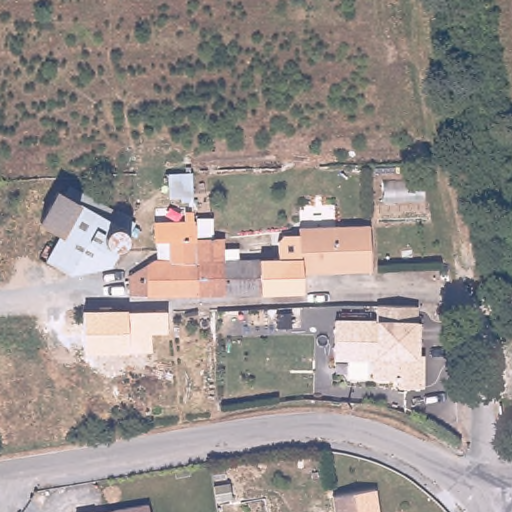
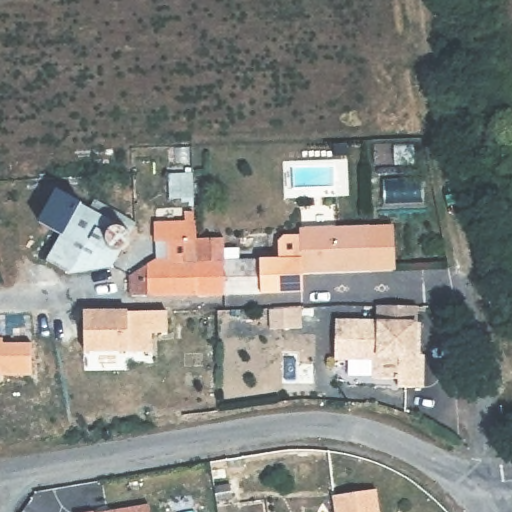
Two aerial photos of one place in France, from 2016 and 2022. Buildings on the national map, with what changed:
unchanged [(172,171),(192,172),(194,192),(172,192),(172,171)]
unchanged [(120,246),(83,270),(72,271),(67,271),(45,258),(59,234),(36,220),(53,190),(76,203),(82,194),(129,221),(124,230),(122,245),(120,246)]
unchanged [(288,255),(286,232),(296,231),(296,227),(366,225),(367,270),(331,271),(322,266),(317,272),(297,272),(297,256),(288,255)]
unchanged [(298,288),(193,295),(189,235),(219,235),(219,257),(261,256),(275,255),(274,238),(280,232),(286,232),(288,255),(297,256),(297,272),(298,288)]
unchanged [(126,270),(140,263),(153,256),(165,256),(165,236),(189,235),(193,295),(168,295),(142,296),(128,295),(123,291),(126,270)]
unchanged [(412,350),(408,350),(408,358),(416,359),(414,391),(390,390),(391,382),(367,381),(368,361),(328,360),(330,322),(373,325),(374,308),(411,310),(410,326),(413,326),(412,350)]
unchanged [(85,311),(101,310),(154,309),(153,322),(154,348),(145,348),(102,348),(85,347),(85,311)]
new [(30,340),(30,380),(0,379),(0,340),(30,340)]
unchanged [(378,512),(333,512),(332,507),(376,500),(378,512)]
unchanged [(151,512),(114,512),(149,505),(151,512)]

